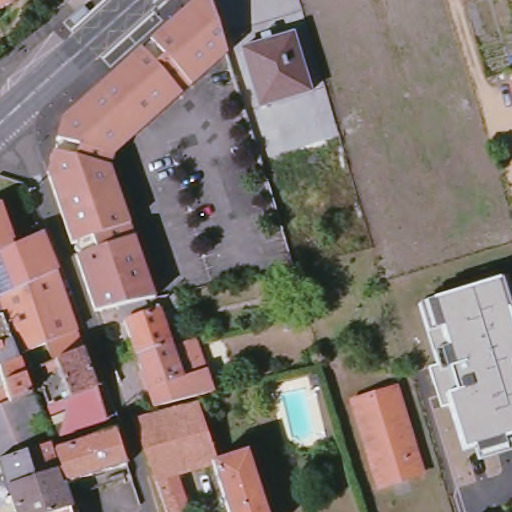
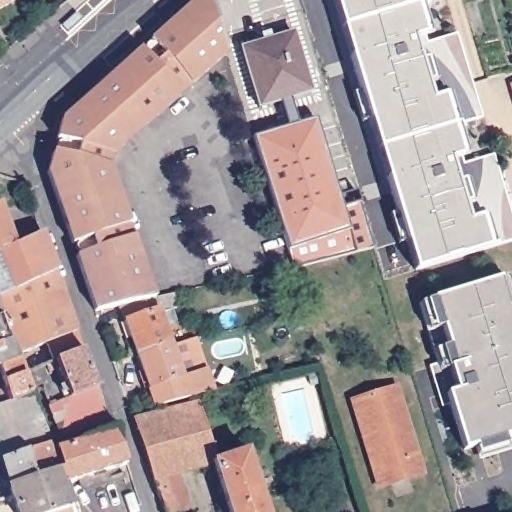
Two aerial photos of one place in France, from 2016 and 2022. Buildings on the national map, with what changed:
unchanged [(15,0),(0,10),(0,0),(15,0)]
unchanged [(53,154),(59,155),(63,143),(55,141),(60,122),(141,49),(145,54),(154,46),(150,41),(195,0),(209,0),(224,54),(113,154),(109,168),(154,299),(120,307),(95,313),(76,257),(83,254),(78,243),(73,245),(48,173),(53,154)]
new [(415,272),(333,0),(436,0),(418,5),(427,36),(428,43),(457,33),(484,118),(454,128),(463,159),(464,164),(494,154),(512,215),(512,242),(491,249),(415,272)]
unchanged [(242,52),(292,36),(309,94),(259,109),(242,52)]
unchanged [(512,77),(512,96),(507,79),(512,77)]
new [(314,119),(341,209),(359,204),(372,247),(293,268),(288,250),(254,137),(314,119)]
demolished [(294,269),(267,183),(287,177),(301,225),(298,227),(309,265),(294,269)]
unchanged [(0,249),(0,200),(14,241),(0,249)]
unchanged [(55,266),(0,294),(0,249),(14,241),(41,227),(55,266)]
unchanged [(78,329),(76,329),(83,346),(30,366),(27,368),(21,351),(19,352),(3,306),(3,304),(0,295),(0,294),(55,266),(78,329)]
unchanged [(512,435),(503,437),(504,444),(477,454),(474,447),(463,451),(449,404),(441,408),(429,368),(443,363),(441,352),(434,330),(426,303),(498,280),(512,326),(512,435)]
unchanged [(3,304),(0,306),(0,295),(3,304)]
unchanged [(154,299),(176,295),(179,308),(173,309),(176,318),(163,322),(171,345),(138,357),(120,307),(154,299)]
unchanged [(10,392),(0,364),(0,307),(3,306),(19,352),(33,390),(41,417),(0,437),(0,396),(10,392)]
unchanged [(176,344),(195,340),(203,363),(211,385),(183,396),(156,406),(155,403),(138,357),(171,345),(176,344)]
unchanged [(83,346),(108,417),(58,429),(43,386),(37,389),(30,366),(83,346)]
unchanged [(354,404),(397,390),(423,476),(380,489),(354,404)]
unchanged [(133,423),(160,413),(196,399),(216,456),(246,446),(268,512),(229,512),(211,459),(176,472),(186,503),(184,504),(187,512),(164,512),(133,423)]
unchanged [(0,458),(0,437),(41,417),(49,442),(0,458)]
unchanged [(93,482),(90,474),(62,483),(56,464),(59,463),(53,444),(111,424),(115,423),(130,469),(116,474),(93,482)]
unchanged [(49,442),(56,464),(9,479),(13,491),(0,495),(0,458),(49,442)]
unchanged [(13,491),(9,479),(56,464),(62,483),(68,501),(75,499),(80,512),(0,512),(0,495),(13,491)]

